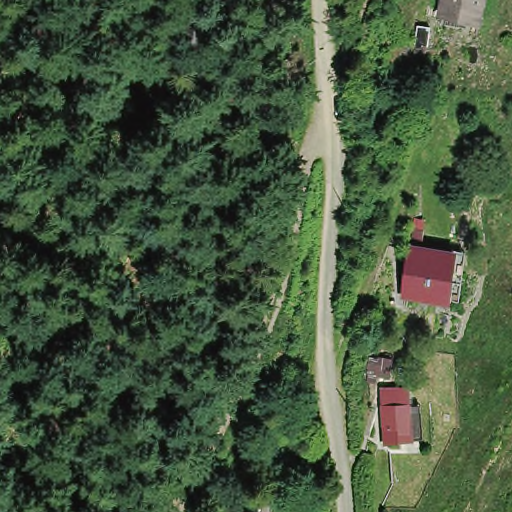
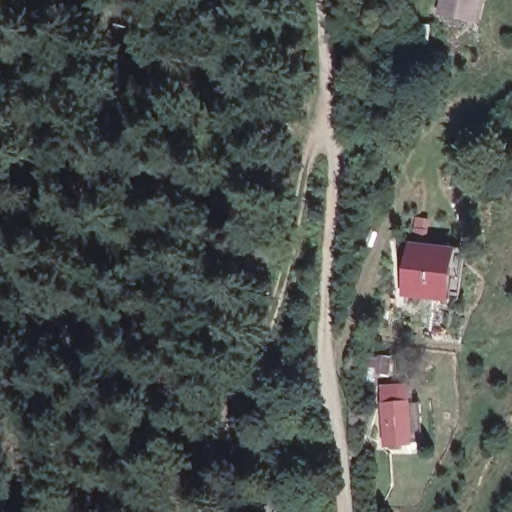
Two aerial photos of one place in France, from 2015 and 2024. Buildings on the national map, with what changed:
unchanged [(485,5),(481,20),(450,12),(454,0),(493,0),(491,7),(485,5)]
unchanged [(423,44),(426,26),(438,27),(435,46),(423,44)]
unchanged [(473,189),(453,185),(456,166),(476,170),(473,189)]
unchanged [(392,283),(407,285),(412,247),(410,247),(412,230),(421,231),(419,248),(451,252),(446,289),(445,298),(406,293),(405,305),(395,303),(392,283)]
unchanged [(368,367),(369,357),(378,358),(378,357),(390,358),(388,377),(376,375),(377,367),(368,367)]
unchanged [(389,447),(387,406),(387,391),(412,391),(412,406),(413,446),(389,447)]
unchanged [(284,488),(281,512),(254,512),(258,485),(284,488)]

